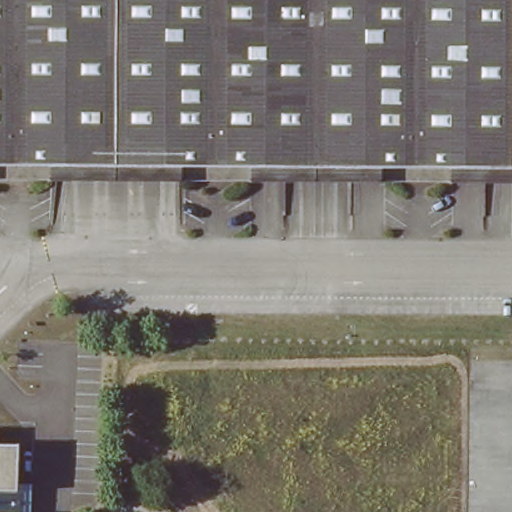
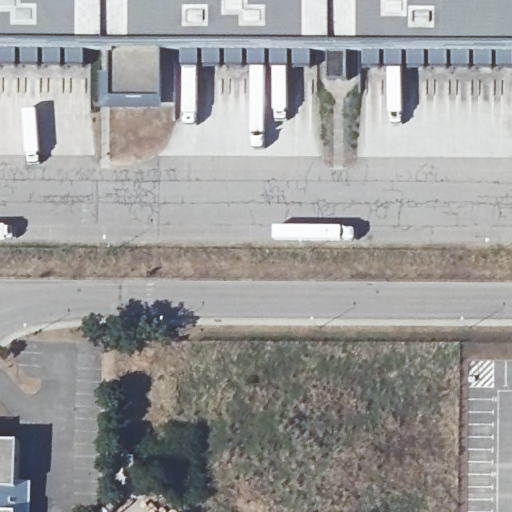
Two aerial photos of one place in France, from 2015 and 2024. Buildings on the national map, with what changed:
new [(369,50),(350,50),(348,81),(330,81),(330,49),(321,50),(318,67),(185,68),(184,49),(166,49),(163,106),(103,109),(104,48),(92,48),(92,67),(0,67),(0,0),(512,0),(512,70),(368,69),(369,50)]
demolished [(512,0),(512,167),(0,165),(0,0),(512,0)]
unchanged [(15,444),(14,490),(21,490),(20,512),(0,512),(0,444),(15,444)]

